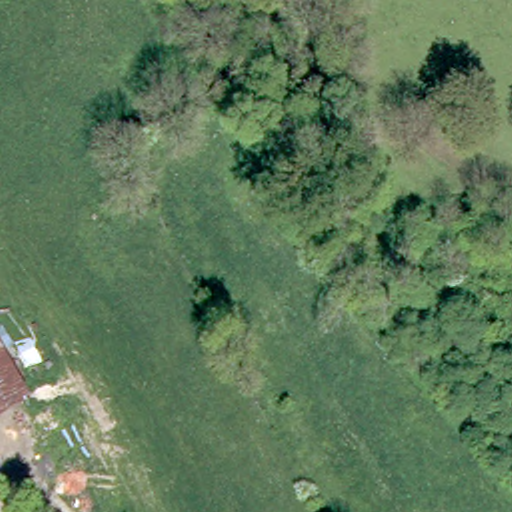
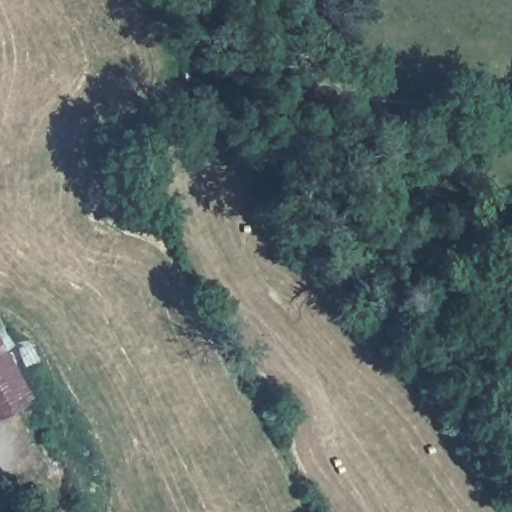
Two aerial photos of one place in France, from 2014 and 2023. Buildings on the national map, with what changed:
unchanged [(23,400),(0,412),(0,353),(23,400)]

